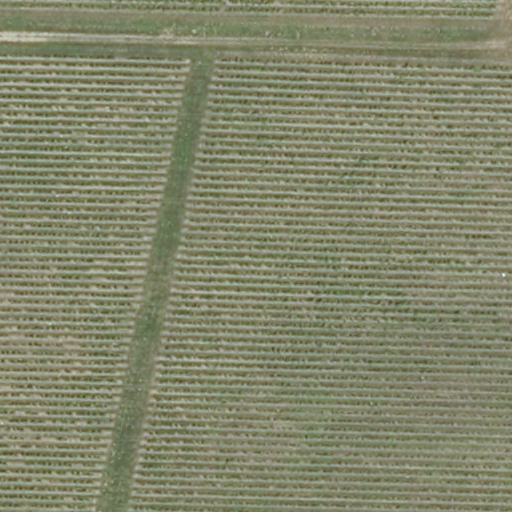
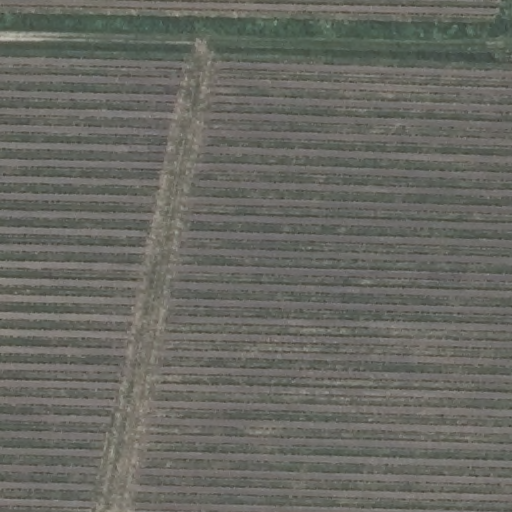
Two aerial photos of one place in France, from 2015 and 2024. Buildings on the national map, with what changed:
[]

